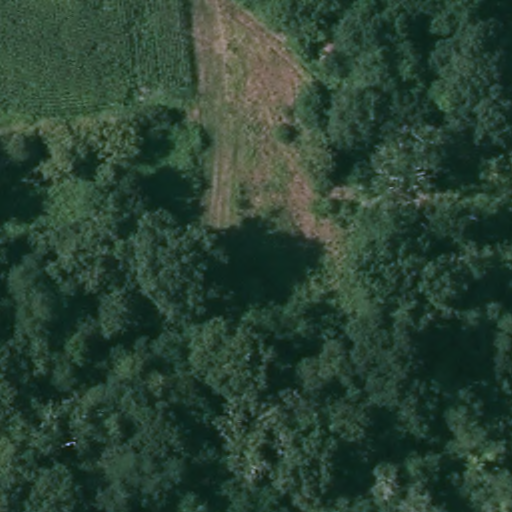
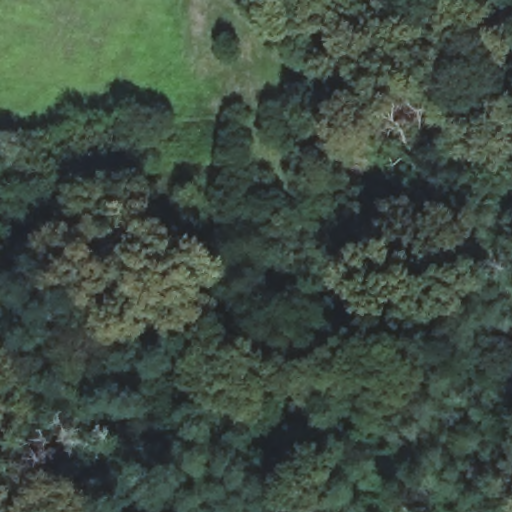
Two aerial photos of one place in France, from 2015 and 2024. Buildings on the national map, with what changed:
unchanged [(344,23),(347,66),(327,67),(321,25),(344,23)]
unchanged [(230,480),(204,481),(200,442),(230,441),(230,480)]

